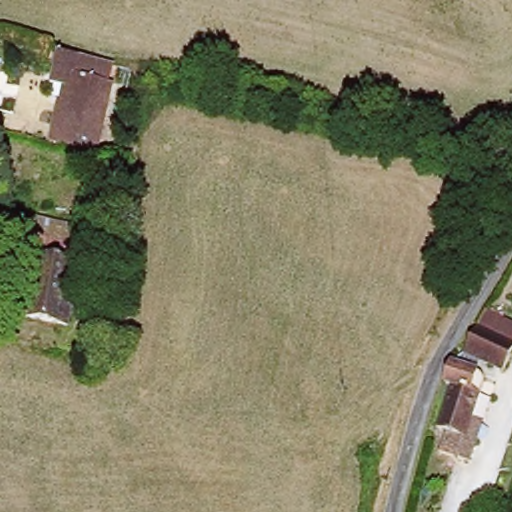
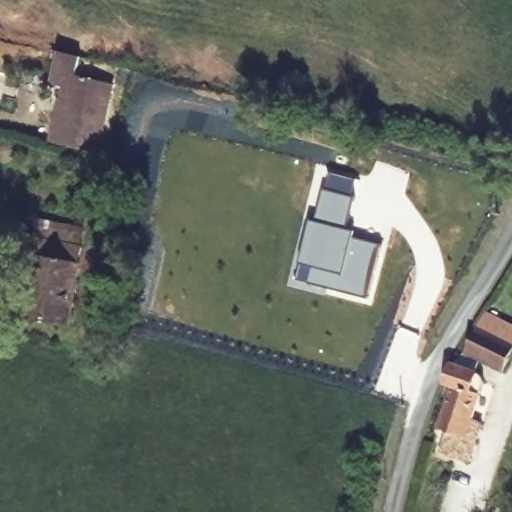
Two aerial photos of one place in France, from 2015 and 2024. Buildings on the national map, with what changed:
unchanged [(52,83),(60,50),(115,63),(110,81),(113,82),(98,149),(52,139),(56,120),(64,86),(52,83)]
new [(329,172),(358,179),(346,227),(316,220),(329,172)]
unchanged [(41,236),(44,218),(86,226),(82,245),(84,246),(68,323),(26,315),(39,257),(24,253),(29,234),(41,236)]
new [(311,218),(316,220),(346,227),(356,230),(354,235),(379,243),(365,298),(295,280),(311,218)]
unchanged [(477,324),(512,341),(512,355),(504,370),(464,351),(477,324)]
unchanged [(488,422),(474,461),(445,451),(452,430),(442,427),(457,385),(451,382),(458,363),(484,373),(478,392),(486,395),(478,418),(488,422)]

